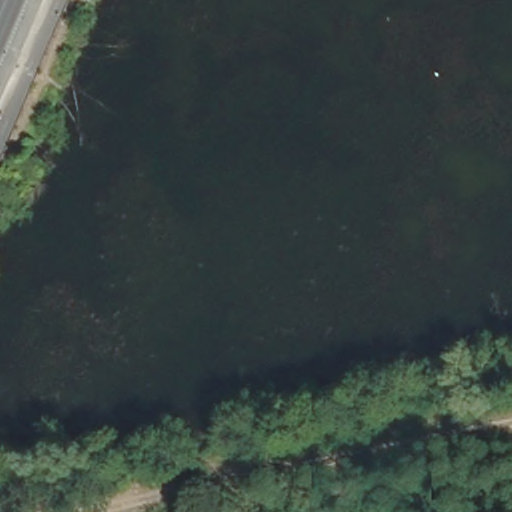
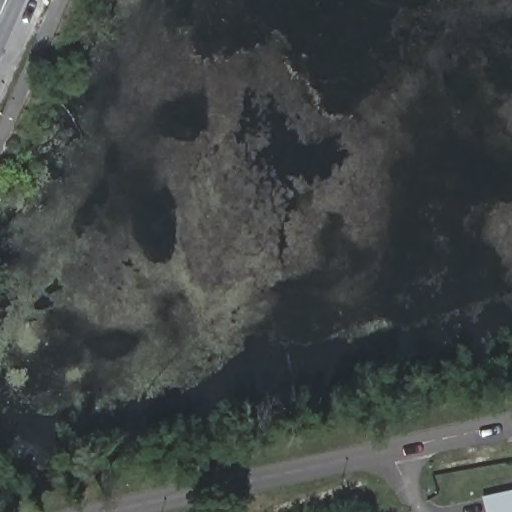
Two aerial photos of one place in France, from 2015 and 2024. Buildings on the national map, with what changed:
new [(512,492),(512,512),(484,512),(482,499),(512,492)]
unchanged [(241,512),(222,512),(222,511),(240,509),(241,512)]

